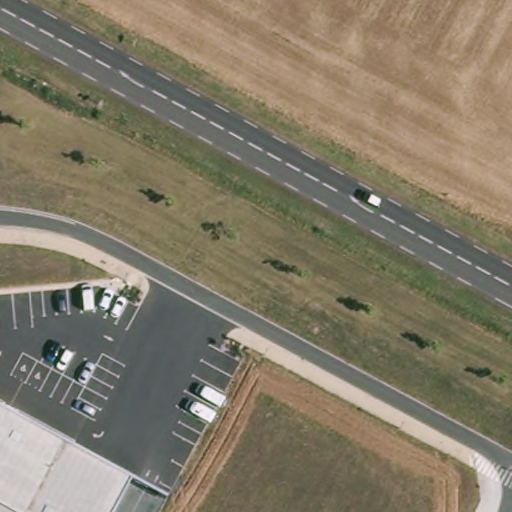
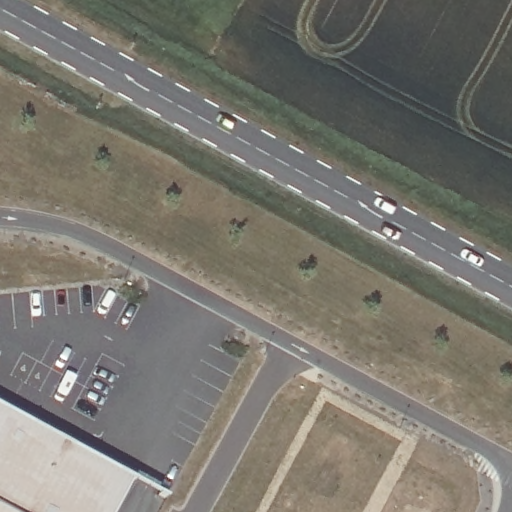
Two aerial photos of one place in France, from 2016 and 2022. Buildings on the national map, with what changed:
unchanged [(0,409),(131,480),(112,512),(0,512),(0,409)]

